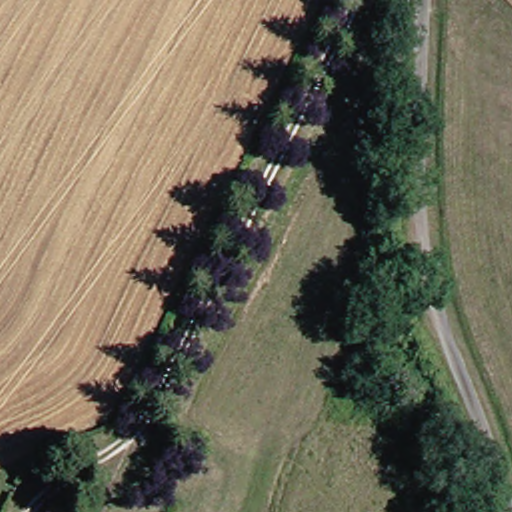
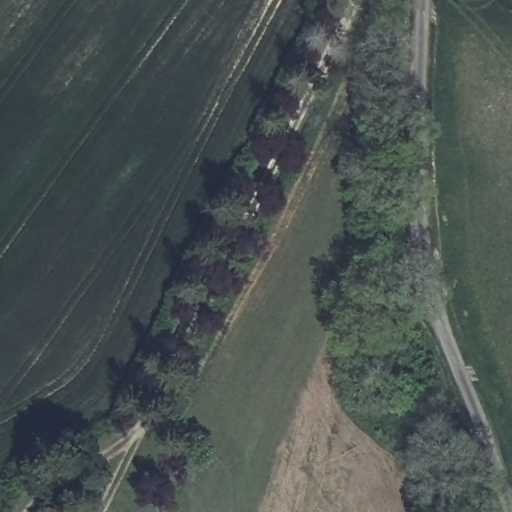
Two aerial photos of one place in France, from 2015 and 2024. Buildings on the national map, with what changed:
unchanged [(62,512),(39,512),(43,505),(62,512)]

